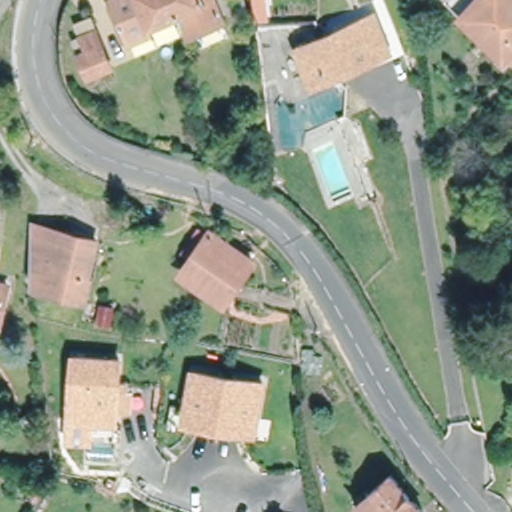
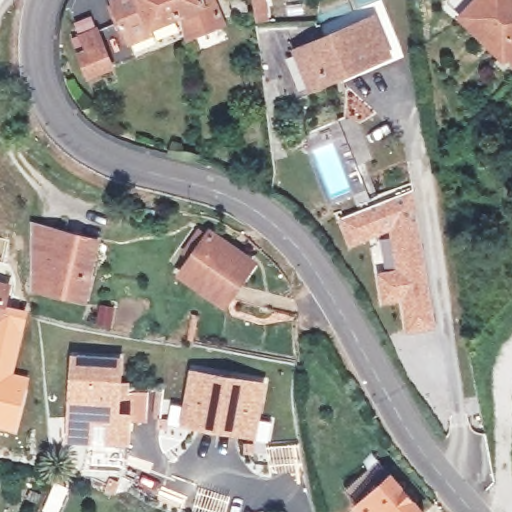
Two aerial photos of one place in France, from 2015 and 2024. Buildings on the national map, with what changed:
unchanged [(164,2),(170,0),(176,15),(141,29),(143,33),(124,41),(108,0),(163,0),(164,2)]
unchanged [(199,5),(176,15),(170,0),(164,2),(163,0),(197,0),(199,5)]
unchanged [(462,18),(448,5),(453,0),(478,0),(480,1),(481,0),(512,0),(512,55),(505,62),(461,20),(462,18)]
unchanged [(89,77),(80,53),(88,50),(82,34),(78,23),(92,18),(96,29),(112,67),(89,77)]
unchanged [(325,81),(312,87),(297,52),(311,46),(374,20),(388,55),(354,69),(343,74),(325,81)]
unchanged [(348,115),(363,122),(377,156),(361,163),(341,118),(348,115)]
new [(435,326),(408,331),(402,299),(385,301),(379,272),(397,268),(391,229),(352,244),(342,217),(414,189),(435,326)]
unchanged [(85,294),(33,281),(31,222),(100,241),(85,294)]
unchanged [(221,297),(185,273),(193,259),(186,254),(199,234),(206,238),(208,236),(252,267),(236,289),(227,302),(221,297)]
unchanged [(0,328),(0,284),(9,286),(0,328)]
unchanged [(112,321),(98,318),(102,301),(116,304),(112,321)]
new [(28,312),(13,373),(29,377),(15,431),(0,427),(0,328),(5,306),(28,312)]
unchanged [(69,436),(71,416),(74,356),(119,359),(116,419),(90,417),(89,437),(69,436)]
unchanged [(241,430),(200,425),(186,422),(188,408),(193,373),(263,383),(258,418),(255,433),(241,430)]
unchanged [(393,475),(424,512),(363,512),(357,505),(393,475)]

